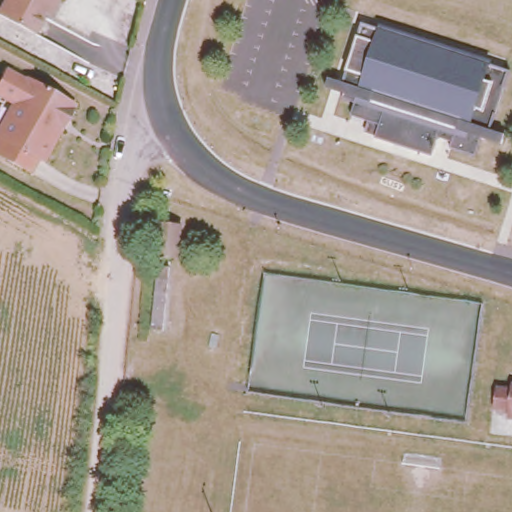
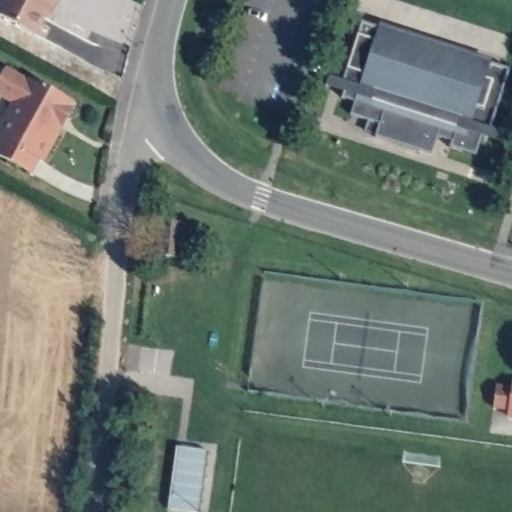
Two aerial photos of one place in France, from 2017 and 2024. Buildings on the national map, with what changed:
unchanged [(0,17),(0,0),(47,0),(30,33),(0,17)]
unchanged [(510,70),(490,129),(486,140),(477,137),(475,151),(450,143),(452,138),(437,134),(432,152),(376,136),(377,133),(365,130),(368,118),(350,112),(356,98),(338,93),(362,23),(510,70)]
unchanged [(31,167),(0,150),(0,131),(0,120),(13,96),(0,89),(0,74),(6,63),(25,74),(27,72),(51,86),(51,88),(62,94),(73,100),(61,123),(43,155),(39,153),(31,167)]
unchanged [(180,217),(178,252),(158,251),(161,216),(180,217)]
demolished [(168,261),(163,324),(151,323),(157,259),(168,261)]
unchanged [(507,408),(492,406),(495,386),(510,388),(510,383),(512,384),(512,416),(506,415),(507,408)]
new [(201,512),(193,512),(169,509),(177,447),(208,451),(201,512)]

